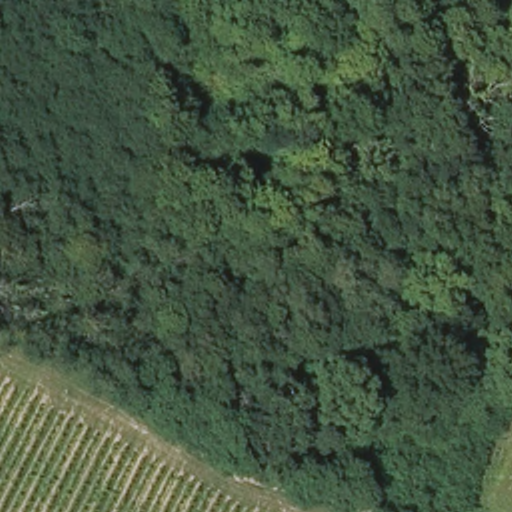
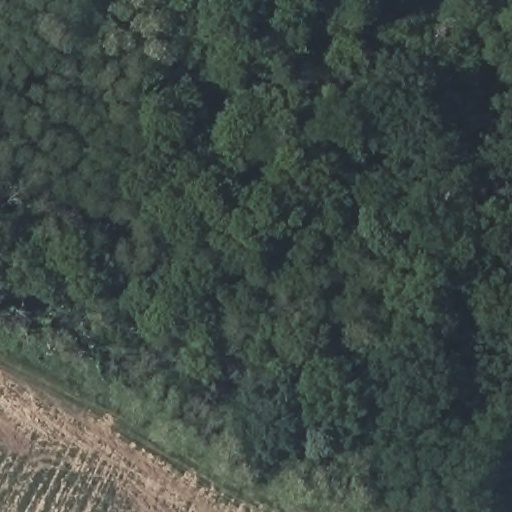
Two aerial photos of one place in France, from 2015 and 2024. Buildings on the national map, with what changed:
[]

